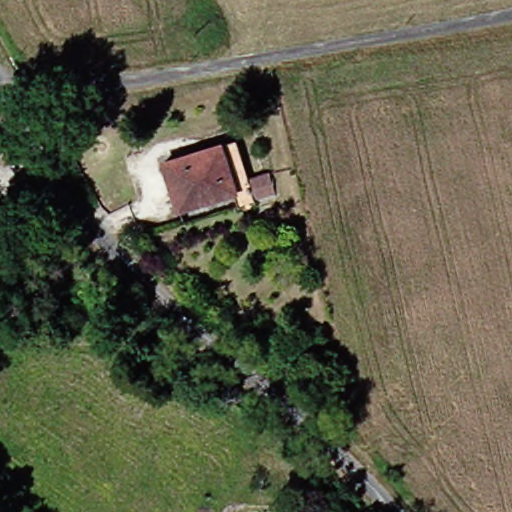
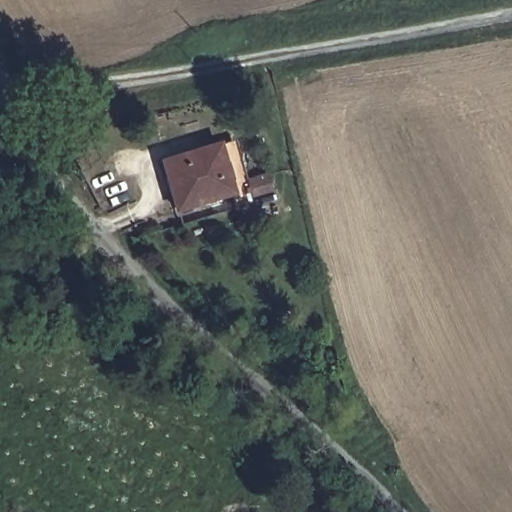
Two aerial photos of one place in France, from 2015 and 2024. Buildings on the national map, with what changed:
unchanged [(240,207),(241,211),(227,214),(224,198),(166,212),(155,160),(229,146),(237,187),(260,183),(263,203),(240,207)]

